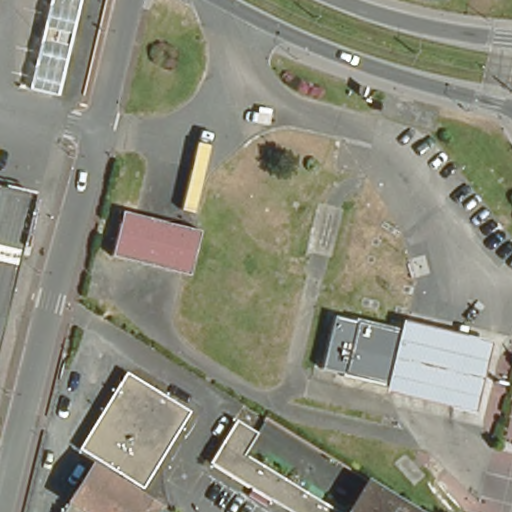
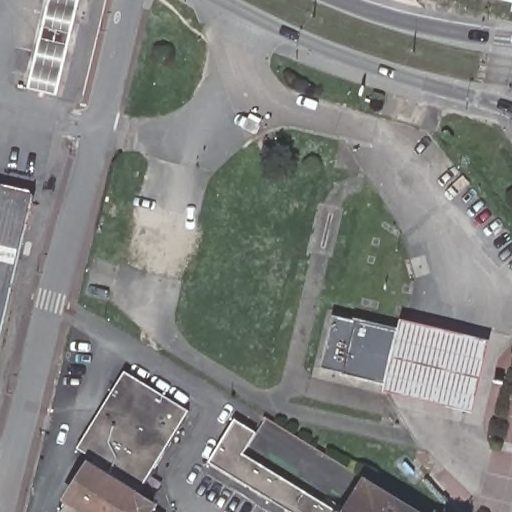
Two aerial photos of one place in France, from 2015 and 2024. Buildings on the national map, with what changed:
unchanged [(48,0),(77,0),(56,86),(28,81),(48,0)]
new [(512,1),(507,0),(512,0),(512,1)]
unchanged [(28,197),(0,318),(0,191),(28,197)]
demolished [(123,214),(206,232),(200,258),(118,239),(123,214)]
demolished [(200,258),(196,278),(114,260),(118,239),(200,258)]
unchanged [(385,327),(371,387),(366,385),(322,375),(338,316),(380,326),(385,327)]
unchanged [(382,317),(472,339),(454,413),(365,392),(366,385),(371,387),(385,327),(380,326),(382,317)]
unchanged [(144,491),(83,451),(130,375),(190,415),(144,491)]
unchanged [(241,422),(263,436),(251,456),(341,512),(288,512),(212,465),(241,422)]
unchanged [(153,508),(151,512),(62,512),(89,468),(153,508)]
unchanged [(356,512),(376,481),(427,512),(356,512)]

